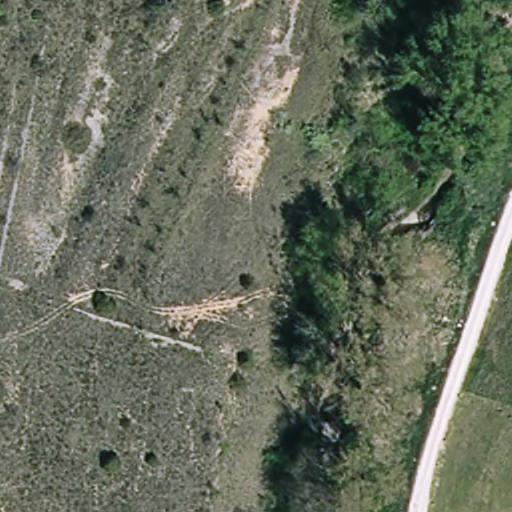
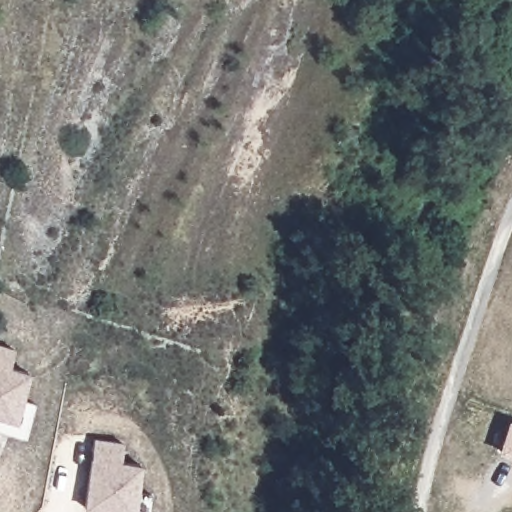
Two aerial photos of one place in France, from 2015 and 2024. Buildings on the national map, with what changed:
new [(10,366),(30,372),(23,400),(36,405),(26,439),(0,432),(0,345),(14,348),(10,366)]
new [(497,452),(507,418),(512,420),(512,457),(497,452)]
new [(93,438),(123,441),(121,460),(141,463),(138,490),(150,495),(148,512),(97,512),(97,511),(84,510),(93,438)]

